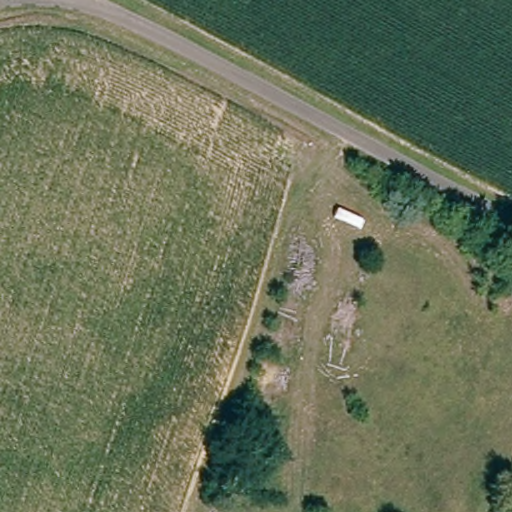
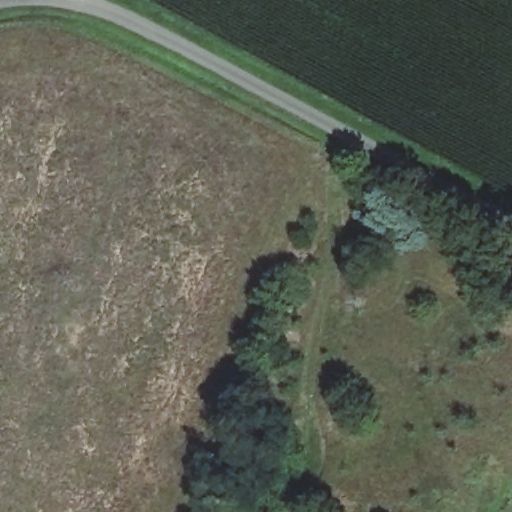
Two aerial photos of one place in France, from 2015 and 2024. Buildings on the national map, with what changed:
[]

